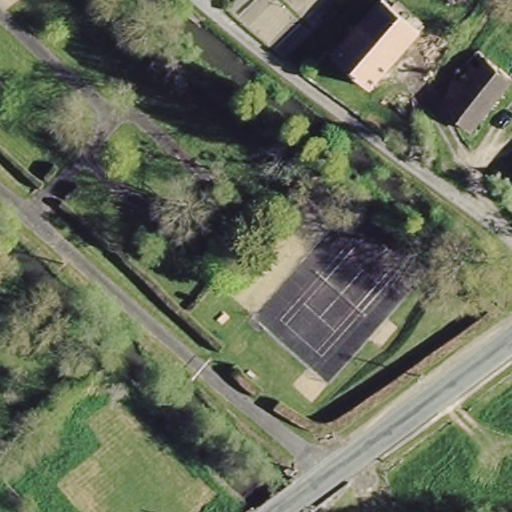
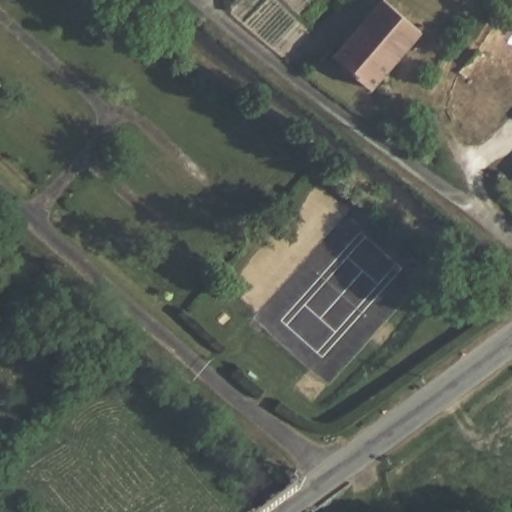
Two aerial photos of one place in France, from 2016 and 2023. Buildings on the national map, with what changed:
unchanged [(382,5),(385,9),(391,3),(400,11),(394,17),(403,25),(410,19),(423,33),(368,94),(332,61),(382,5)]
unchanged [(512,84),(470,138),(443,116),(458,83),(480,56),(512,79),(512,84)]

